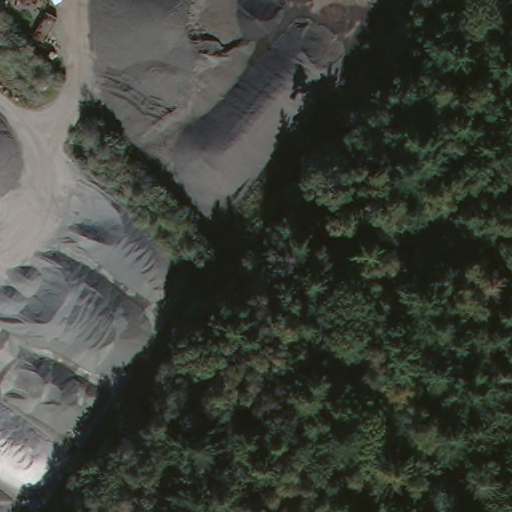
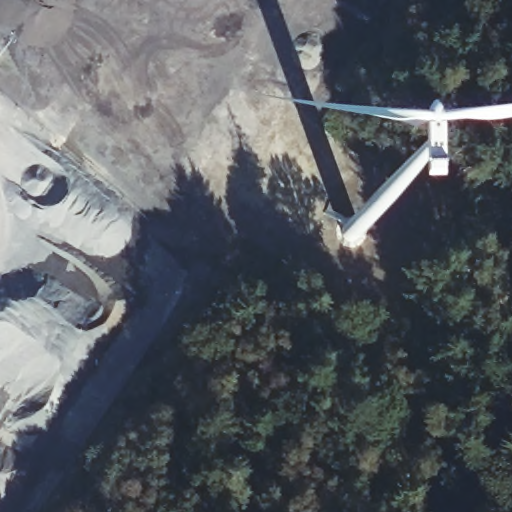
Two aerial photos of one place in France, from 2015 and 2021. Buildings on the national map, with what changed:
[]

